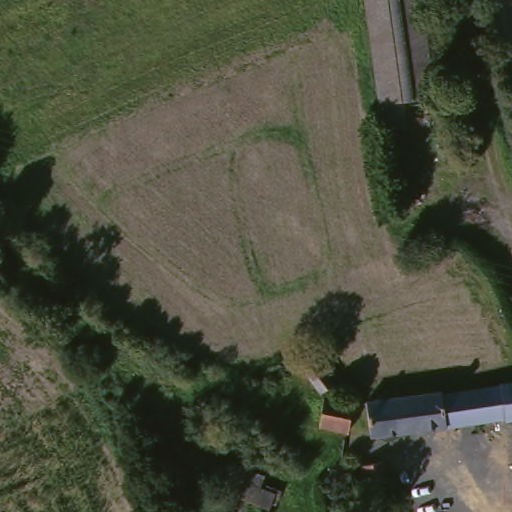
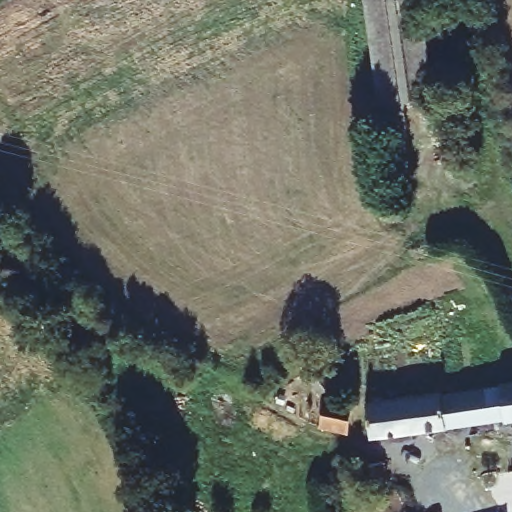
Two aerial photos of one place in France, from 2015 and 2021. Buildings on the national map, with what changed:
unchanged [(414,0),(434,107),(382,112),(364,0),(414,0)]
unchanged [(405,117),(407,137),(387,140),(384,121),(405,117)]
unchanged [(512,415),(453,426),(380,432),(370,400),(449,392),(512,380),(512,415)]
unchanged [(356,427),(328,423),(331,396),(360,398),(356,427)]
unchanged [(385,478),(365,481),(363,469),(383,466),(385,478)]

